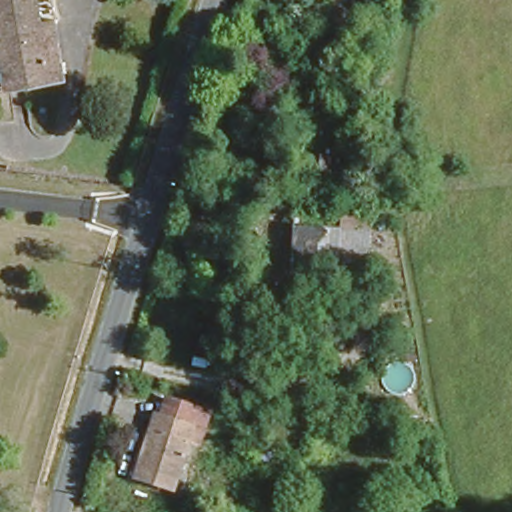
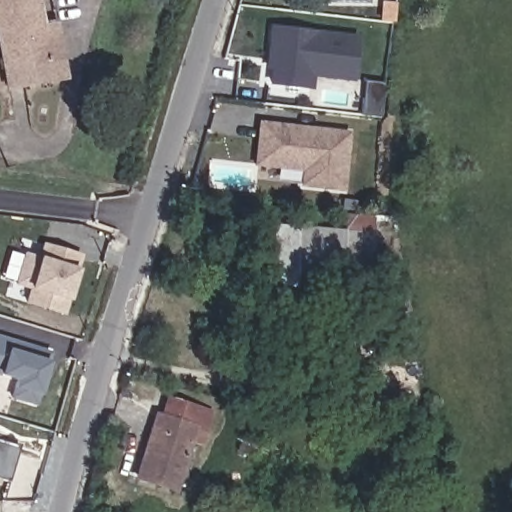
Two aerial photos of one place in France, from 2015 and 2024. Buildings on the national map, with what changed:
unchanged [(0,71),(0,0),(51,0),(53,11),(49,12),(58,69),(1,78),(0,71)]
new [(269,26),(358,34),(353,79),(312,75),(311,89),(266,84),(269,26)]
new [(257,120),(349,131),(344,191),(300,187),(300,172),(252,166),(257,120)]
new [(296,268),(295,287),(266,285),(270,222),(298,225),(296,268)]
unchanged [(342,272),(296,268),(298,225),(373,230),(371,259),(342,257),(342,272)]
new [(76,268),(78,269),(67,301),(66,300),(61,315),(21,302),(25,289),(10,284),(21,251),(35,255),(40,242),(80,255),(76,268)]
new [(10,398),(14,380),(0,376),(0,337),(48,351),(32,405),(10,398)]
unchanged [(133,478),(151,415),(158,417),(164,397),(208,407),(203,430),(191,426),(172,490),(133,478)]
unchanged [(282,452),(278,465),(241,451),(245,439),(282,452)]
new [(8,480),(0,478),(0,442),(18,447),(8,480)]

